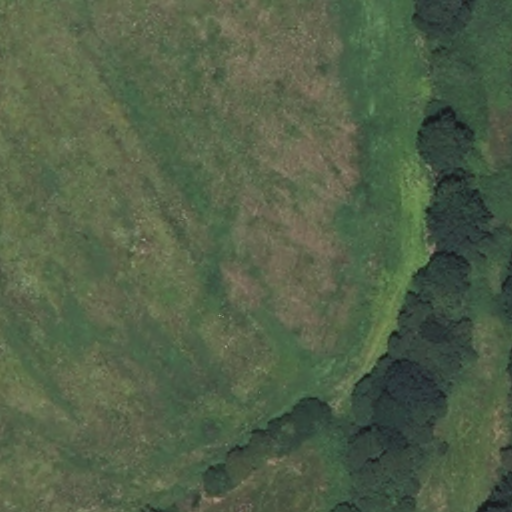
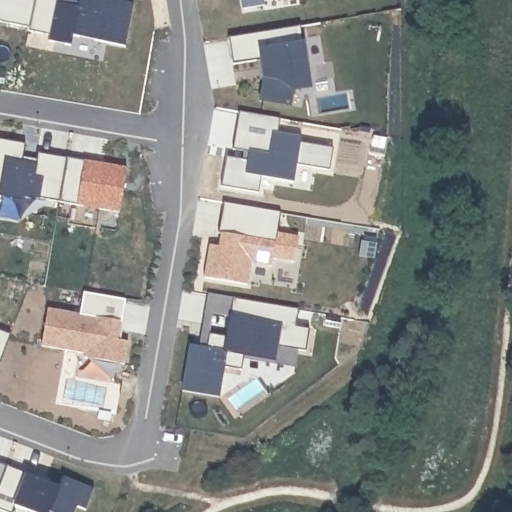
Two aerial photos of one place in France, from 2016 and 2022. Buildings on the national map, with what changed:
new [(35,0),(32,17),(0,11),(0,0),(35,0)]
new [(35,0),(135,0),(128,36),(75,25),(73,35),(51,31),(52,25),(31,21),(32,17),(35,0)]
new [(241,7),(240,0),(263,0),(264,4),(241,7)]
new [(234,64),(229,37),(301,25),(305,25),(308,41),(315,86),(295,90),(292,106),(262,101),(266,78),(263,59),(234,64)]
new [(25,150),(23,164),(36,166),(37,159),(67,164),(59,209),(24,202),(19,230),(0,226),(0,211),(1,208),(0,208),(0,146),(25,150)]
new [(67,164),(126,175),(119,219),(59,209),(67,164)]
new [(219,246),(222,233),(219,232),(224,201),(280,211),(276,233),(299,236),(295,258),(273,255),(272,262),(252,259),(248,281),(205,274),(210,245),(219,246)]
new [(49,308),(81,313),(85,292),(126,299),(123,322),(121,321),(118,339),(129,341),(125,364),(86,357),(86,353),(42,345),(49,308)]
new [(246,361),(244,372),(226,370),(221,400),(184,393),(192,348),(199,349),(209,293),(218,295),(211,333),(226,336),(233,297),(302,309),(299,326),(312,328),(308,354),(300,352),(297,370),(246,361)]
new [(11,335),(0,364),(0,330),(11,335)]
new [(7,465),(0,484),(0,463),(7,465)]
new [(7,465),(40,478),(40,479),(59,486),(63,476),(95,488),(86,510),(78,506),(75,512),(31,512),(15,506),(13,512),(7,512),(0,510),(0,484),(7,465)]

